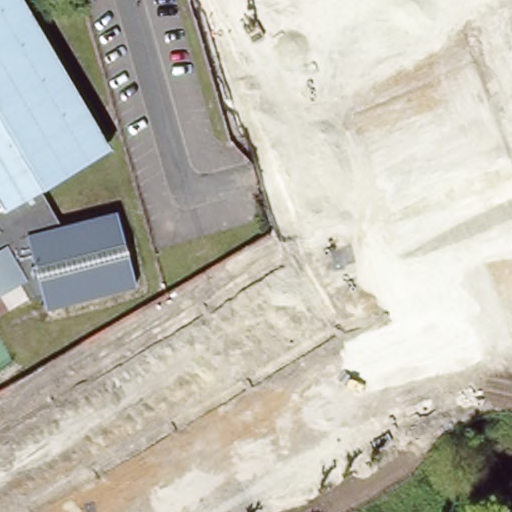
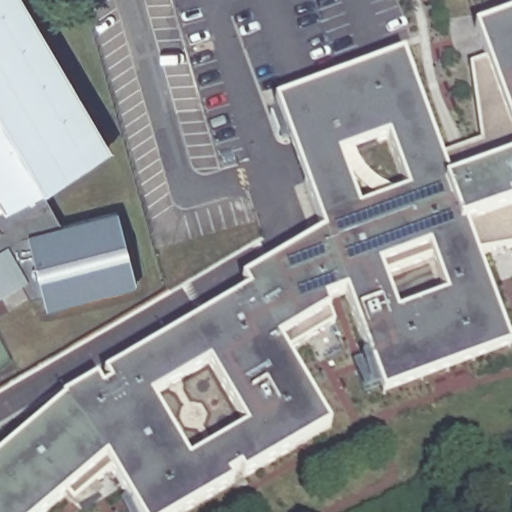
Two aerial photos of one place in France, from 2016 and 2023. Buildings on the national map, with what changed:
unchanged [(20,0),(105,145),(39,183),(62,222),(117,207),(137,281),(46,305),(42,292),(30,295),(18,275),(0,286),(0,0),(20,0)]
new [(476,252),(510,348),(382,395),(345,292),(326,301),(330,310),(335,323),(287,351),(330,427),(242,477),(239,473),(230,477),(233,483),(182,512),(136,512),(112,470),(74,503),(67,492),(44,512),(0,512),(0,454),(62,401),(61,398),(97,378),(103,387),(109,384),(104,374),(247,290),(242,280),(322,232),(275,101),(404,54),(440,156),(480,141),(470,65),(486,60),(476,28),(512,4),(512,247),(490,251),(476,252)]

